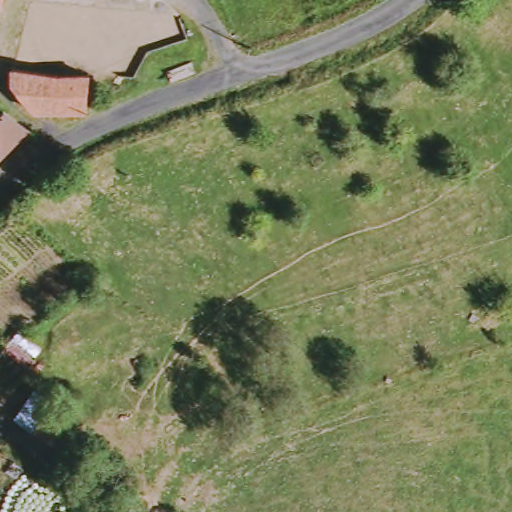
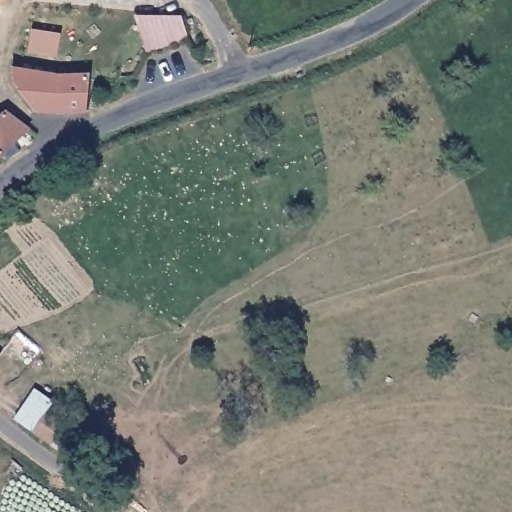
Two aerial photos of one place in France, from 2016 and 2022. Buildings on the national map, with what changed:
unchanged [(5,0),(0,13),(0,0),(5,0)]
new [(134,18),(181,17),(188,40),(147,51),(134,18)]
unchanged [(15,79),(17,73),(19,62),(93,71),(93,81),(92,116),(43,115),(15,79)]
unchanged [(2,124),(10,114),(32,133),(0,170),(0,123),(2,124)]
unchanged [(3,362),(0,366),(0,359),(3,362)]
unchanged [(61,414),(58,417),(64,421),(48,441),(17,421),(38,393),(42,389),(56,403),(52,406),(61,414)]

